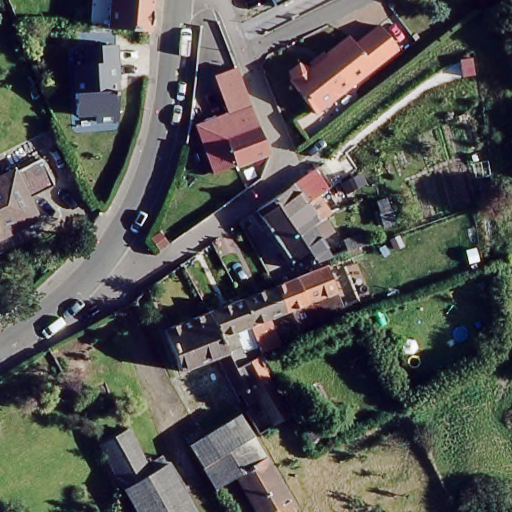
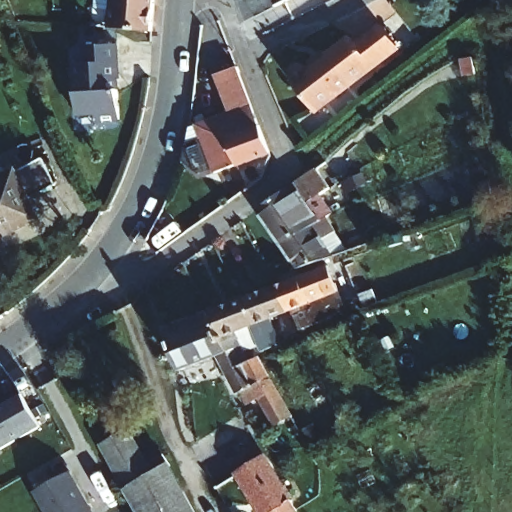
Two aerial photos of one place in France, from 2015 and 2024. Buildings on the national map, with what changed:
unchanged [(112,32),(115,0),(157,0),(154,36),(122,33),(112,32)]
unchanged [(272,0),(286,0),(275,6),(272,0)]
unchanged [(389,44),(307,110),(280,79),(278,65),(283,63),(285,61),(288,57),(299,61),(338,31),(345,40),(370,20),(389,44)]
unchanged [(120,49),(122,84),(120,84),(122,124),(100,125),(99,118),(80,119),(77,69),(88,68),(87,51),(120,49)]
unchanged [(233,66),(256,124),(257,124),(267,151),(215,172),(195,125),(228,111),(212,74),(233,66)]
unchanged [(32,154),(45,178),(22,192),(30,207),(0,224),(0,166),(5,163),(7,168),(32,154)]
unchanged [(288,179),(289,181),(307,166),(319,181),(311,187),(312,190),(297,199),(288,205),(264,222),(252,204),(288,179)]
unchanged [(288,205),(297,199),(312,190),(325,209),(317,213),(275,240),(264,222),(288,205)]
unchanged [(275,240),(317,213),(326,226),(315,234),(326,251),(290,263),(275,240)]
unchanged [(320,260),(330,286),(297,298),(307,322),(292,329),(278,306),(269,280),(320,260)]
unchanged [(269,280),(278,306),(263,311),(273,337),(255,345),(248,333),(245,325),(242,319),(245,318),(235,293),(269,280)]
unchanged [(237,399),(228,386),(225,389),(209,350),(172,364),(157,323),(202,306),(235,293),(245,318),(242,319),(227,325),(238,355),(249,352),(255,368),(258,365),(262,371),(258,373),(268,387),(282,408),(265,417),(247,392),(237,399)]
new [(0,407),(23,396),(39,426),(0,449),(0,407)]
unchanged [(272,512),(269,512),(263,503),(257,508),(231,469),(210,482),(183,439),(232,406),(247,428),(245,430),(289,503),(272,512)]
unchanged [(94,443),(120,427),(140,462),(155,454),(187,512),(131,512),(94,443)]
new [(72,473),(93,512),(42,512),(32,494),(72,473)]

